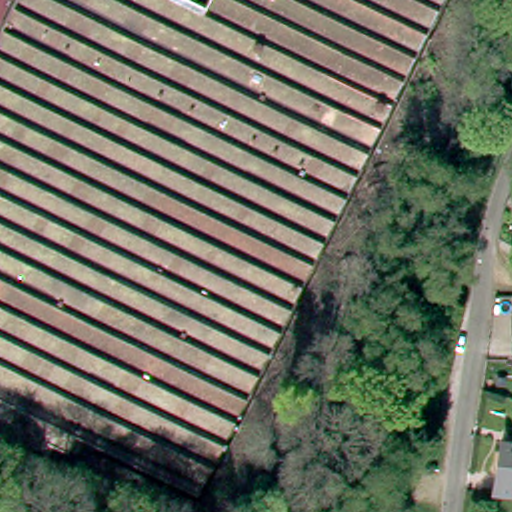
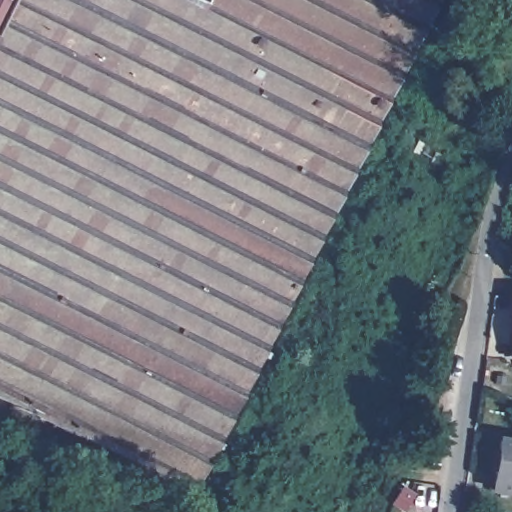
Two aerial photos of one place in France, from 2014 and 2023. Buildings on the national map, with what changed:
unchanged [(0,0),(7,0),(0,14),(0,0)]
unchanged [(433,0),(412,42),(425,50),(377,150),(362,140),(294,276),(297,278),(288,297),(282,297),(241,382),(187,491),(71,432),(61,452),(0,422),(0,14),(7,0),(433,0)]
unchanged [(501,441),(512,442),(512,493),(492,491),(501,441)]

